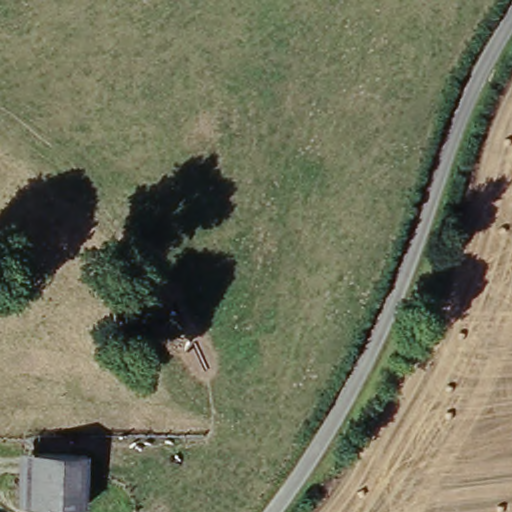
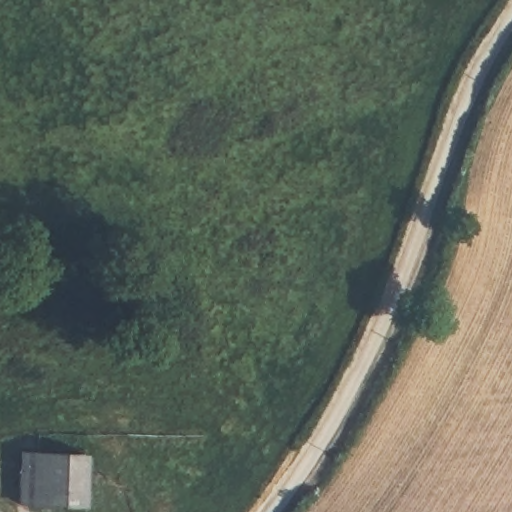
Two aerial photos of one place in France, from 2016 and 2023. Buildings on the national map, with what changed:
unchanged [(84,457),(88,510),(23,506),(23,453),(84,457)]

